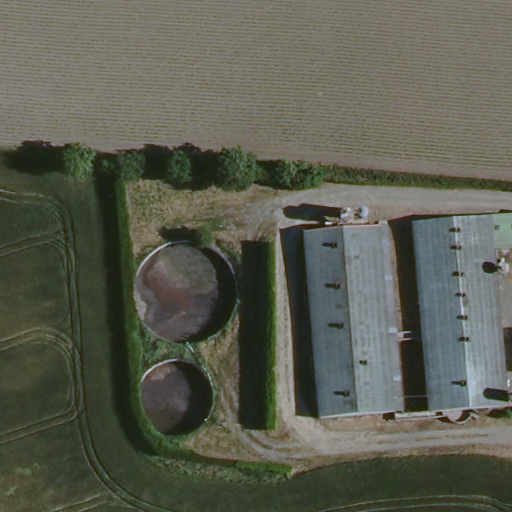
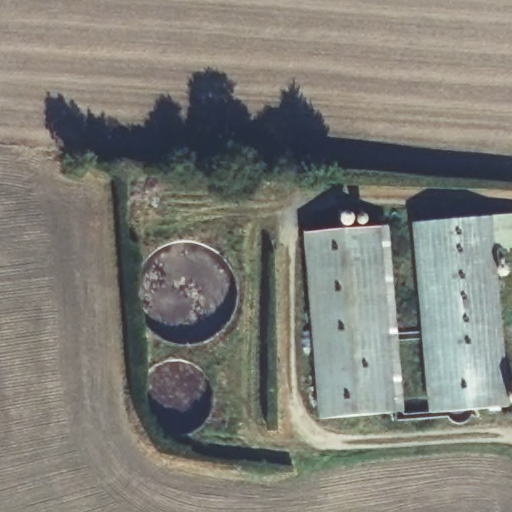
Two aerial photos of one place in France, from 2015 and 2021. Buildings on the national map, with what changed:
unchanged [(508,407),(430,412),(415,222),(512,215),(512,249),(496,250),(508,407)]
unchanged [(387,222),(402,411),(330,417),(312,225),(387,222)]

